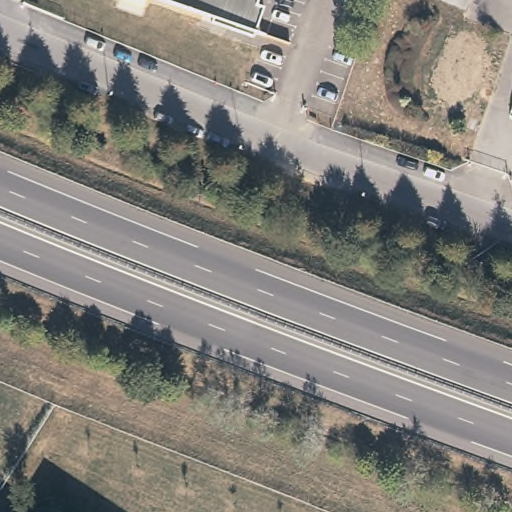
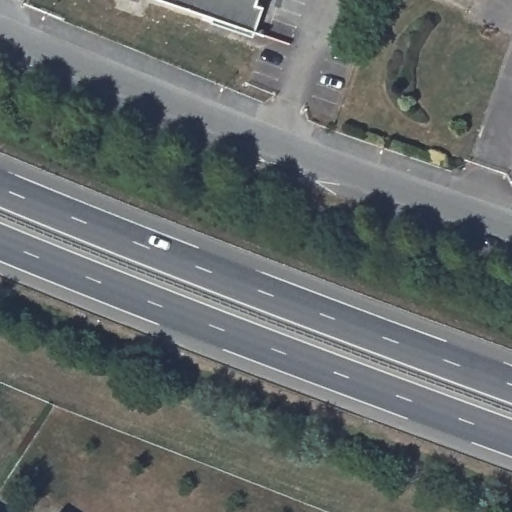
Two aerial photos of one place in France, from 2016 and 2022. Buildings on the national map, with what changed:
unchanged [(262,0),(252,30),(211,11),(209,16),(173,0),(261,0),(262,0)]
unchanged [(485,263),(481,275),(462,269),(466,256),(485,263)]

